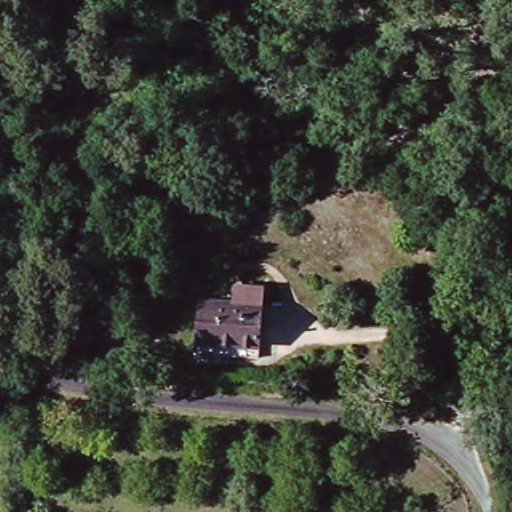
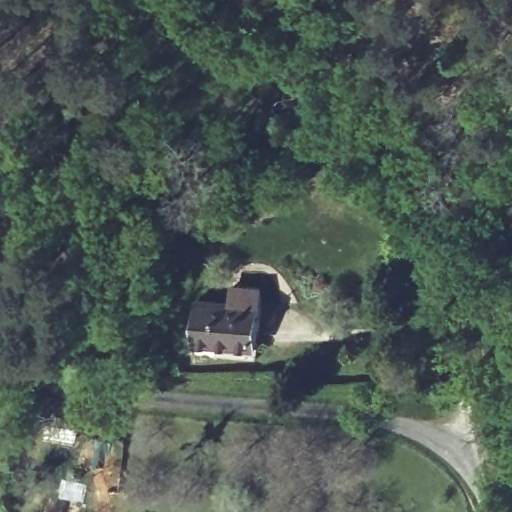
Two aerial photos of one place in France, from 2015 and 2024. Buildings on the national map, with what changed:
unchanged [(261,300),(258,342),(198,337),(200,296),(261,300)]

